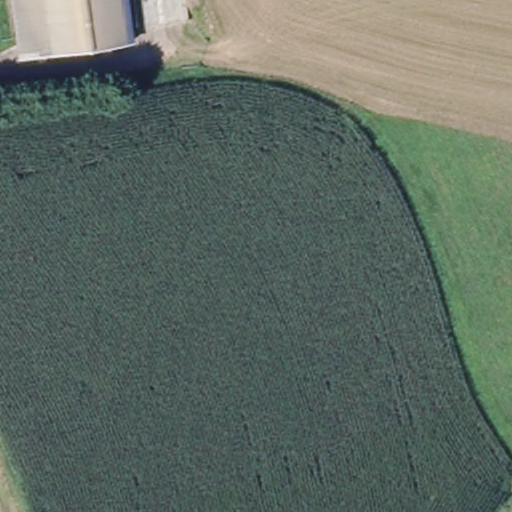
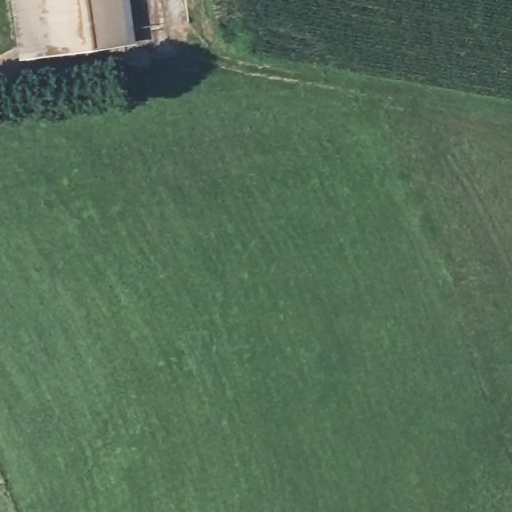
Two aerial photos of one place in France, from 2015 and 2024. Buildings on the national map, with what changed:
unchanged [(27,57),(18,0),(137,0),(144,43),(27,57)]

